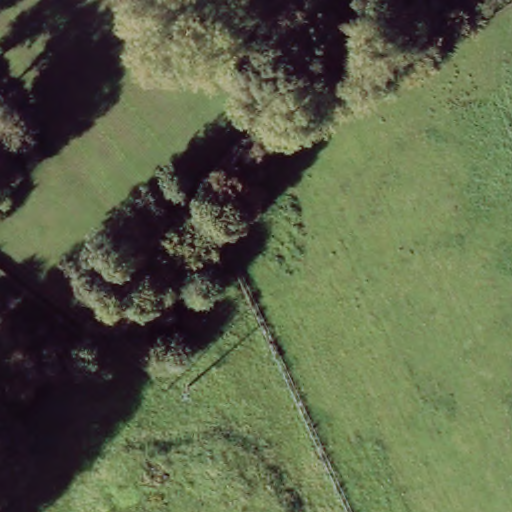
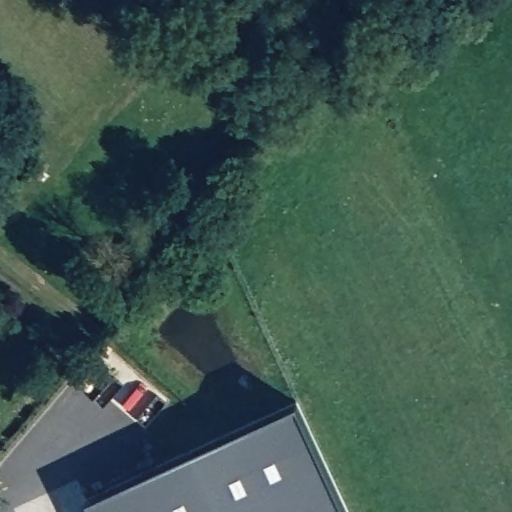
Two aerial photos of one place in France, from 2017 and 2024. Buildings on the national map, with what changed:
new [(295,403),(345,512),(91,512),(85,499),(295,403)]

